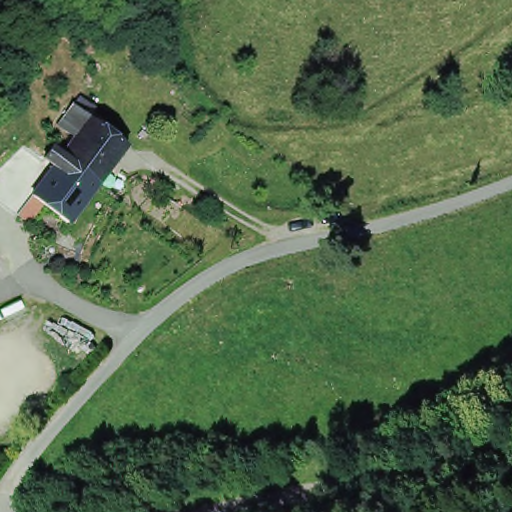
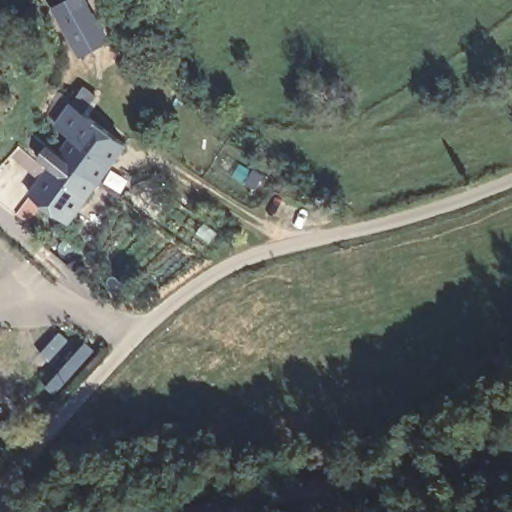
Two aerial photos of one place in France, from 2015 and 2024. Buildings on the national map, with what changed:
new [(106,41),(77,59),(47,10),(62,0),(83,0),(106,41)]
unchanged [(97,186),(91,181),(62,161),(62,160),(75,142),(54,129),(68,109),(88,123),(124,147),(97,186)]
unchanged [(97,186),(69,227),(34,201),(41,190),(62,161),(91,181),(97,186)]
new [(95,353),(54,398),(43,389),(84,343),(95,353)]

